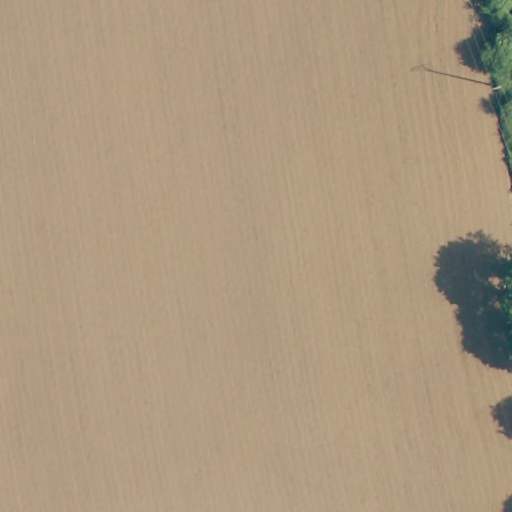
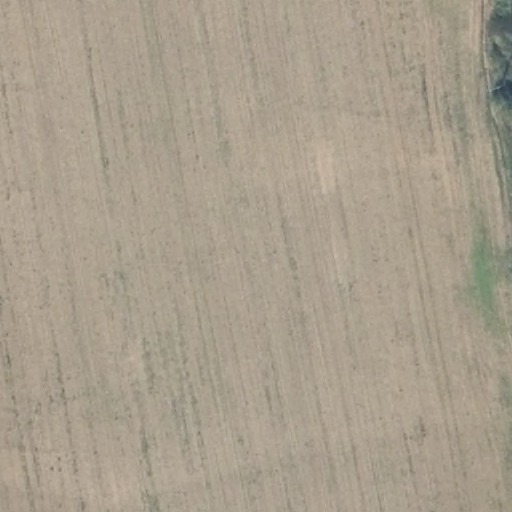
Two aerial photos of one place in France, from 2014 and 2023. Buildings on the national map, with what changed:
[]

